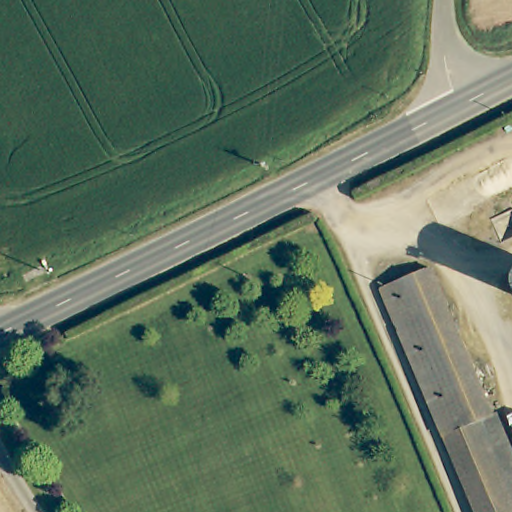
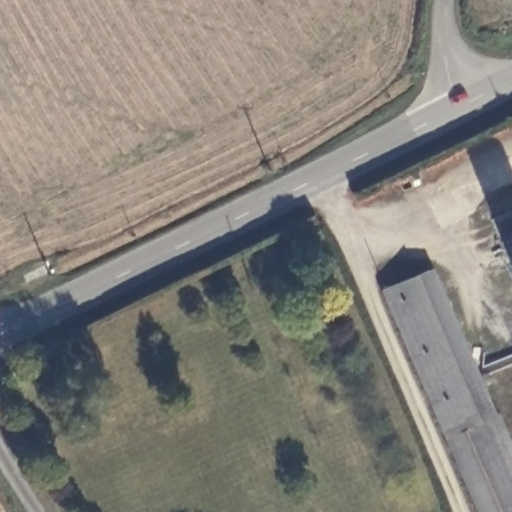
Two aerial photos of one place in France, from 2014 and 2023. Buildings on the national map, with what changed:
unchanged [(497,412),(512,444),(512,512),(479,512),(380,292),(428,271),(490,414),(497,412)]

